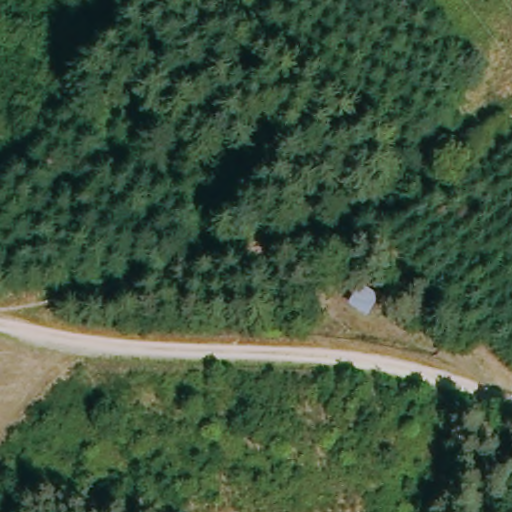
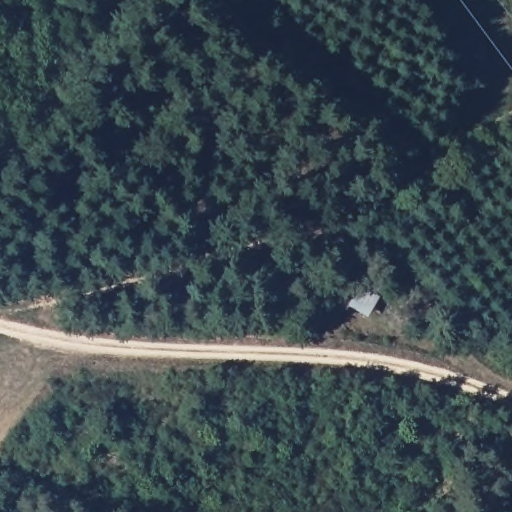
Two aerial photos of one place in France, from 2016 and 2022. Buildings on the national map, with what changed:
unchanged [(367,315),(344,301),(360,274),(380,290),(367,315)]

